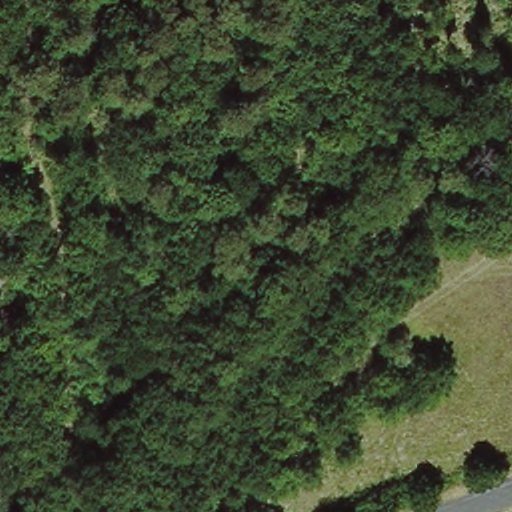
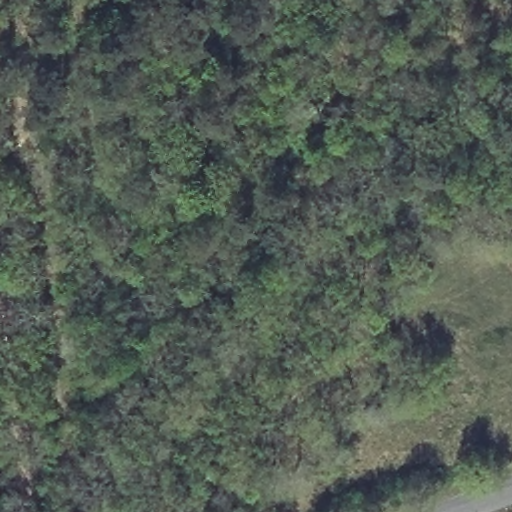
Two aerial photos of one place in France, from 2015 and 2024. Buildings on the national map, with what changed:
[]

